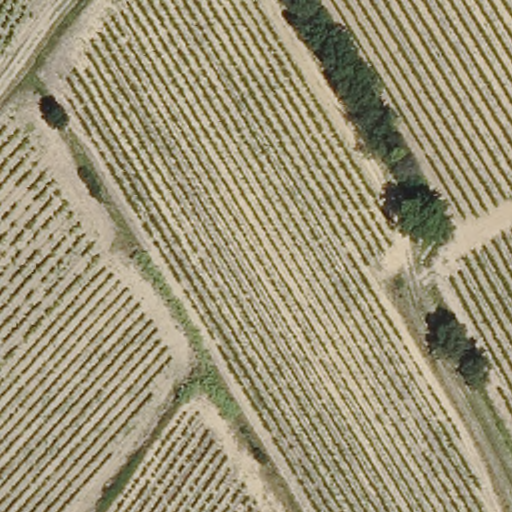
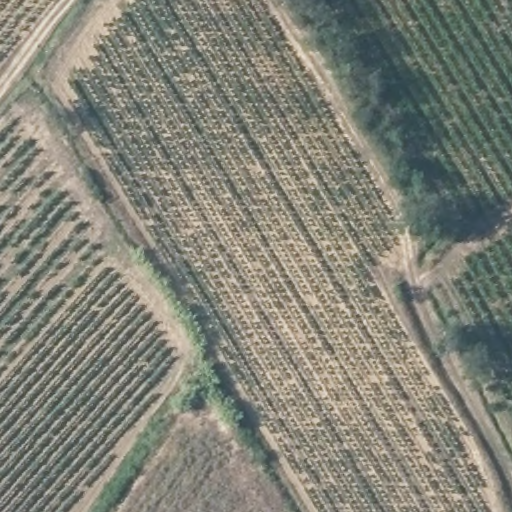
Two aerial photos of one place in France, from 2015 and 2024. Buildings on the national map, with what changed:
[]

